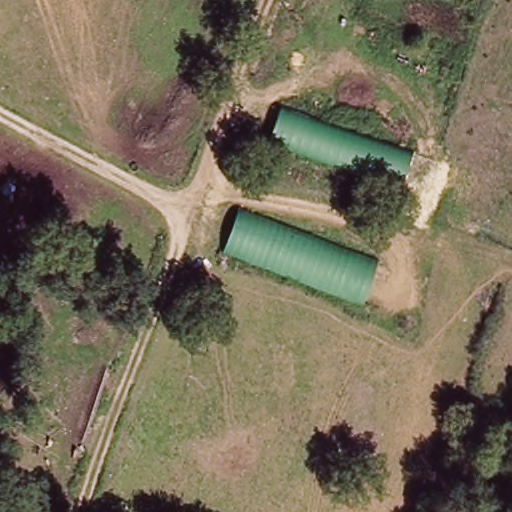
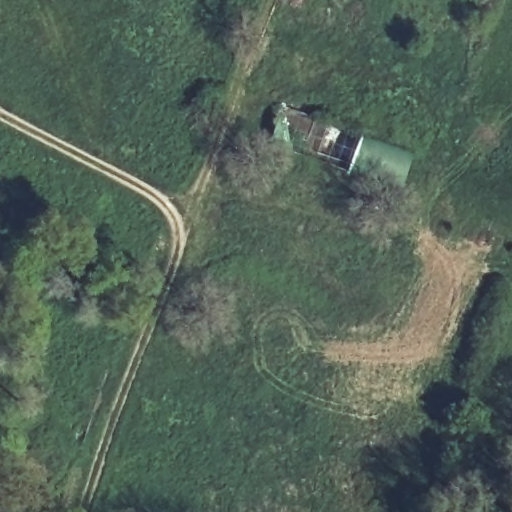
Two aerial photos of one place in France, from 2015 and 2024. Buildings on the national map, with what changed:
unchanged [(270,146),(282,110),(415,154),(403,188),(270,146)]
demolished [(378,263),(367,302),(225,249),(238,209),(378,263)]

